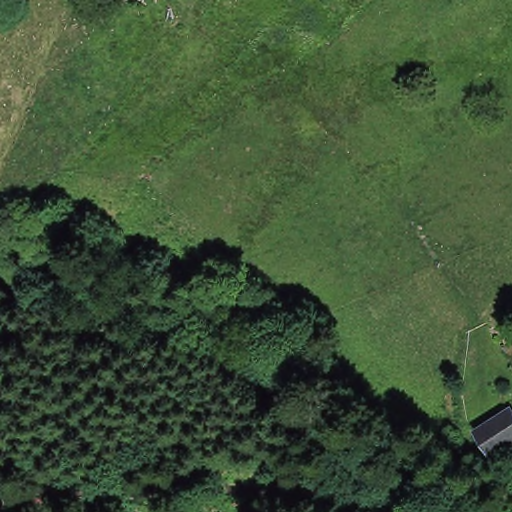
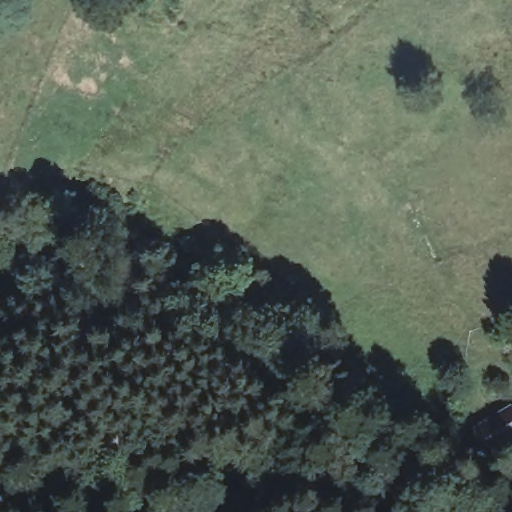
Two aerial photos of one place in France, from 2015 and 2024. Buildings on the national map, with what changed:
unchanged [(500,450),(484,428),(512,409),(512,442),(500,450)]

